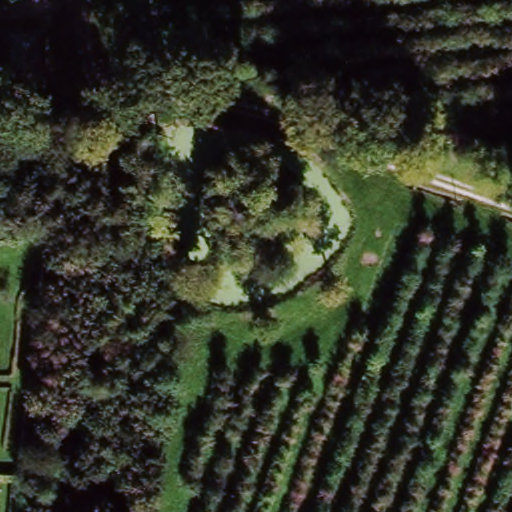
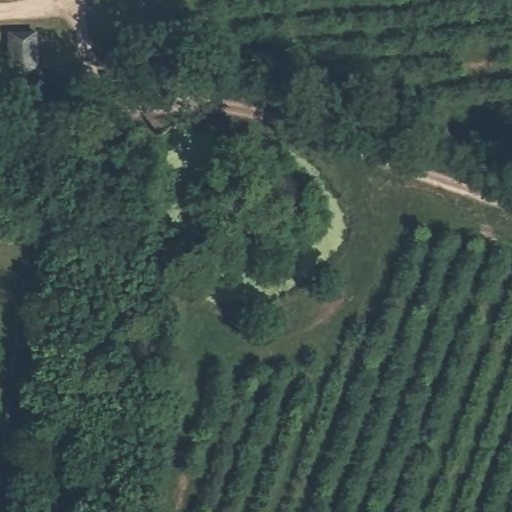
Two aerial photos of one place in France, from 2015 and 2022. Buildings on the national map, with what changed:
unchanged [(46,33),(46,72),(23,71),(22,33),(46,33)]

